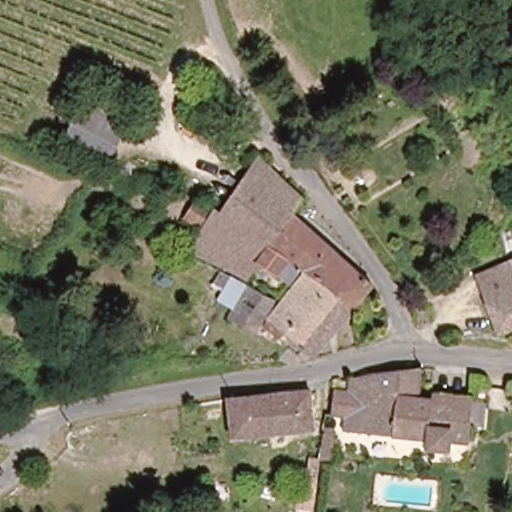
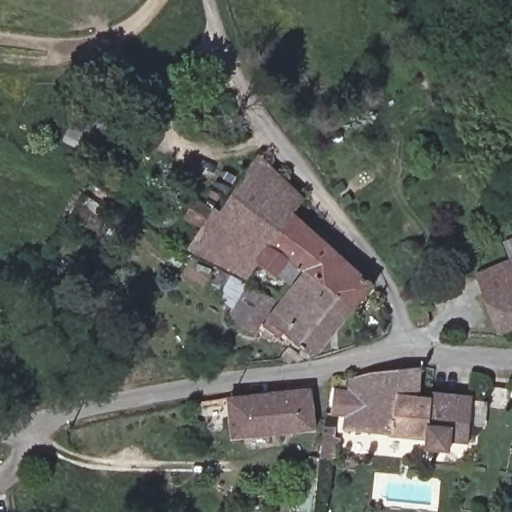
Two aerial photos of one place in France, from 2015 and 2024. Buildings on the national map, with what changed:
unchanged [(67,142),(91,87),(137,107),(112,162),(67,142)]
unchanged [(305,273),(302,271),(292,285),(262,263),(253,279),(192,247),(214,201),(224,206),(251,153),(297,199),(289,215),(364,276),(370,284),(352,308),(306,274),(305,273)]
unchanged [(478,277),(505,266),(511,263),(512,263),(512,328),(502,332),(478,277)]
unchanged [(316,358),(268,324),(306,274),(352,308),(316,358)]
unchanged [(271,278),(283,286),(278,295),(265,288),(271,278)]
unchanged [(274,301),(257,331),(235,319),(252,289),(274,301)]
unchanged [(434,308),(437,321),(427,323),(424,310),(434,308)]
unchanged [(431,450),(431,452),(427,452),(428,440),(342,430),(343,416),(329,414),(334,378),(345,379),(347,368),(350,367),(422,363),(419,394),(432,395),(472,398),(467,444),(465,443),(448,442),(447,452),(431,450)]
unchanged [(224,399),(307,389),(310,431),(228,437),(224,399)]
unchanged [(320,457),(322,441),(323,430),(323,428),(332,429),(331,436),(337,437),(336,443),(333,460),(320,457)]

